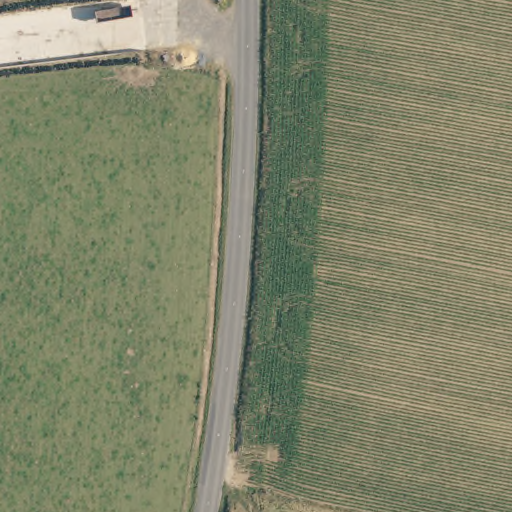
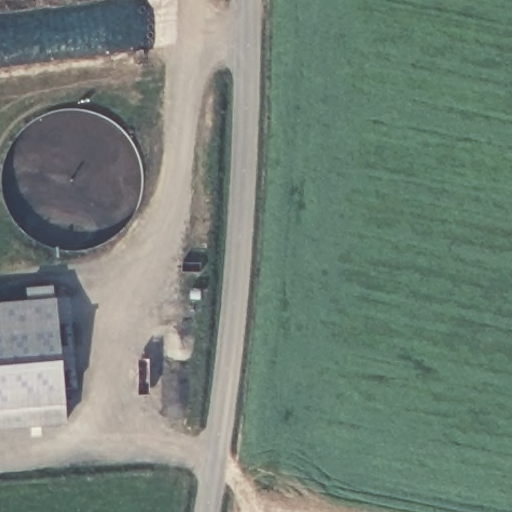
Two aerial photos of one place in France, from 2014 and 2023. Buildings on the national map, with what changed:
new [(22,299),(21,288),(47,284),(47,297),(58,402),(0,408),(0,302),(22,299)]
new [(58,402),(60,422),(0,428),(0,408),(58,402)]

